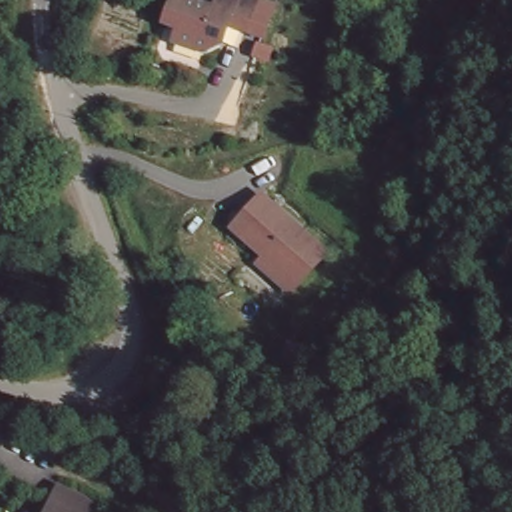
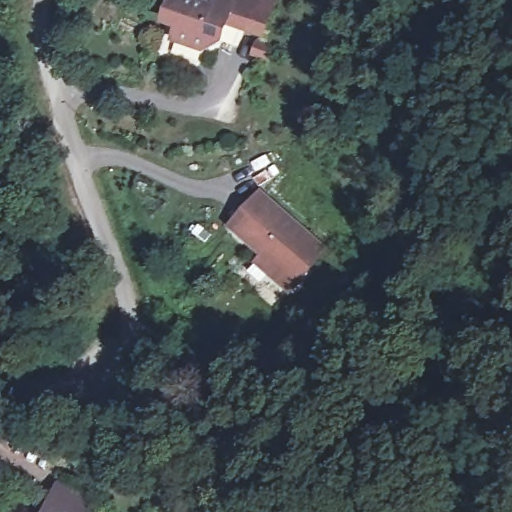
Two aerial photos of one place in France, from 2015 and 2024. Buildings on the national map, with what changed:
unchanged [(165,12),(170,0),(253,0),(242,30),(224,23),(217,44),(201,51),(171,40),(177,28),(161,21),(165,12)]
unchanged [(263,252),(233,224),(246,209),(243,206),(258,189),(288,215),(299,226),(326,248),(291,288),(276,275),(256,259),(263,252)]
unchanged [(68,460),(45,450),(53,434),(74,444),(68,460)]
unchanged [(42,512),(56,483),(100,505),(96,512),(42,512)]

